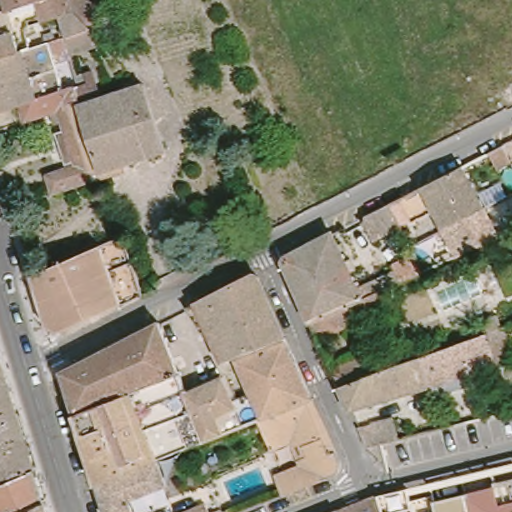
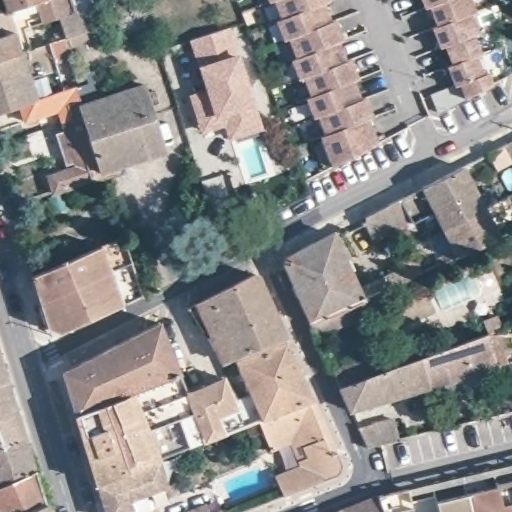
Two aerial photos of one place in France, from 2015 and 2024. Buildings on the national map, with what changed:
unchanged [(57,0),(5,19),(3,16),(0,9),(0,0),(56,0),(57,0)]
unchanged [(24,35),(0,42),(0,18),(3,16),(5,19),(57,0),(58,0),(69,0),(74,18),(90,35),(88,36),(101,50),(72,61),(66,44),(58,23),(24,35)]
new [(328,1),(324,4),(331,20),(335,20),(342,39),(339,40),(348,59),(355,79),(353,80),(360,98),(364,96),(373,117),(368,119),(376,143),(330,165),(319,136),(325,134),(318,115),(311,117),(303,97),(307,95),(301,78),(297,80),(289,59),(294,57),(286,37),(282,39),(274,20),(279,17),(274,0),(328,0),(328,1)]
new [(475,11),(471,15),(479,32),(472,35),(480,55),(476,56),(482,72),(487,70),(492,82),(467,96),(438,112),(429,94),(452,85),(445,67),(449,65),(442,45),(438,46),(430,29),(435,26),(428,8),(425,9),(421,0),(471,0),(475,11)]
new [(231,27),(239,53),(196,65),(188,40),(231,27)]
unchanged [(24,35),(31,55),(0,65),(0,42),(24,35)]
unchanged [(31,55),(52,48),(68,95),(17,112),(0,118),(0,65),(31,55)]
new [(204,89),(196,65),(239,53),(264,130),(228,142),(223,127),(201,136),(187,95),(204,89)]
unchanged [(68,95),(80,90),(78,81),(92,76),(102,103),(80,111),(101,177),(102,182),(50,197),(45,180),(75,170),(55,118),(23,129),(17,112),(68,95)]
unchanged [(80,111),(102,103),(143,90),(165,158),(101,177),(80,111)]
new [(487,152),(512,140),(512,163),(496,170),(487,152)]
new [(222,174),(229,199),(205,206),(198,181),(222,174)]
unchanged [(392,211),(442,185),(464,174),(486,215),(511,203),(512,204),(512,239),(459,262),(436,220),(405,236),(403,234),(377,247),(365,225),(392,211)]
unchanged [(306,313),(281,261),(280,254),(280,250),(286,246),(311,234),(326,225),(351,277),(387,260),(386,255),(407,245),(416,262),(373,282),(306,313)]
unchanged [(138,299),(55,341),(47,335),(45,331),(43,325),(32,288),(28,277),(118,239),(138,299)]
unchanged [(210,304),(256,281),(260,281),(263,284),(269,297),(300,368),(316,406),(264,427),(208,450),(188,398),(228,381),(239,405),(253,399),(237,364),(210,304)]
unchanged [(373,282),(381,298),(313,330),(306,313),(373,282)]
unchanged [(217,372),(192,314),(210,304),(237,364),(217,372)]
unchanged [(79,420),(67,380),(162,329),(181,380),(79,420)]
unchanged [(369,366),(377,384),(504,337),(509,360),(491,366),(495,377),(350,420),(340,397),(333,382),(369,366)]
unchanged [(2,377),(12,410),(22,440),(31,471),(0,484),(0,371),(2,377)]
unchanged [(208,450),(194,455),(179,415),(151,426),(162,455),(172,451),(176,463),(163,467),(138,477),(102,491),(79,420),(181,380),(188,398),(208,450)]
unchanged [(316,406),(343,465),(344,471),(343,475),(341,477),(335,481),(287,500),(279,480),(303,471),(294,450),(275,458),(264,427),(316,406)]
unchanged [(397,420),(402,440),(371,448),(363,430),(397,420)]
unchanged [(393,512),(386,512),(380,496),(404,491),(512,465),(512,512),(408,512),(407,509),(393,512)]
unchanged [(163,467),(172,491),(132,506),(134,512),(108,512),(102,491),(138,477),(163,467)]
unchanged [(0,512),(0,484),(31,471),(41,503),(21,512),(0,512)]
unchanged [(386,512),(343,512),(380,496),(386,512)]
unchanged [(44,512),(21,512),(41,503),(44,512)]
unchanged [(208,512),(200,512),(206,510),(208,512)]

